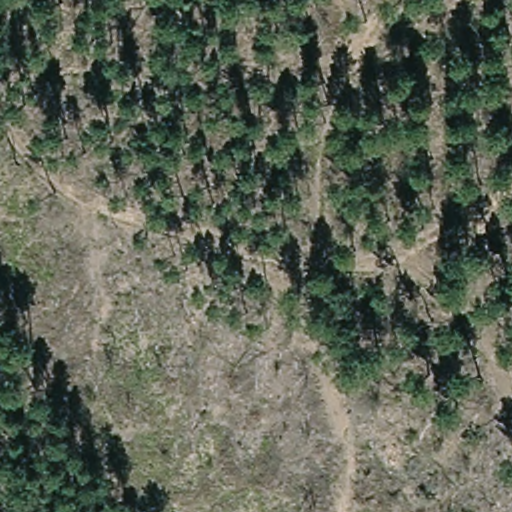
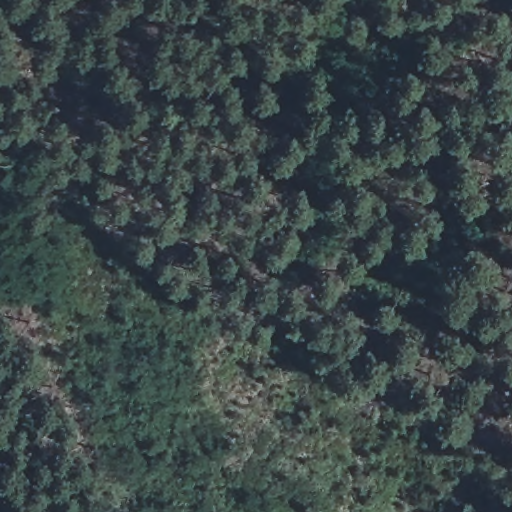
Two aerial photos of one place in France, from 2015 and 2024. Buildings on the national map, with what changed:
[]

